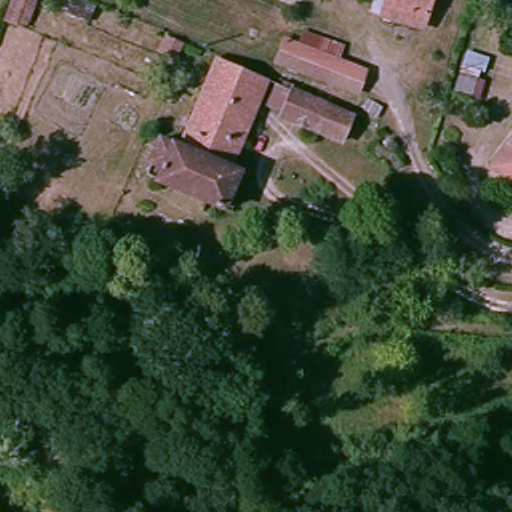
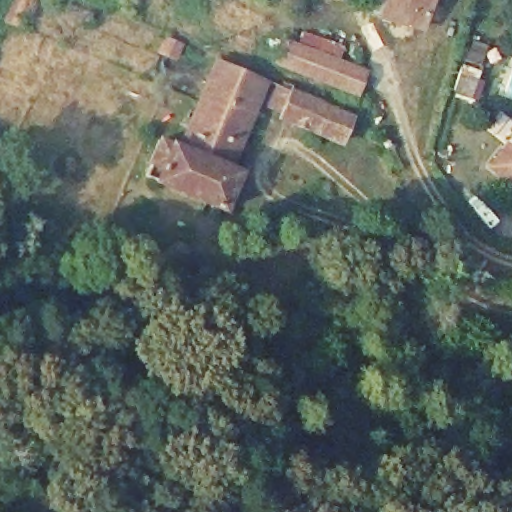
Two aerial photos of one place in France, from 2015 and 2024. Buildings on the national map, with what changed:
unchanged [(6,24),(17,0),(35,0),(21,32),(6,24)]
unchanged [(380,18),(385,0),(433,0),(425,30),(380,18)]
unchanged [(115,14),(107,33),(82,20),(90,3),(115,14)]
unchanged [(360,96),(279,64),(288,39),(328,54),(326,60),(366,77),(360,96)]
unchanged [(147,183),(165,134),(182,139),(217,59),(262,76),(230,158),(249,166),(234,212),(147,183)]
unchanged [(341,134),(293,114),(300,98),(347,116),(341,134)]
unchanged [(488,166),(507,141),(512,145),(512,185),(488,166)]

